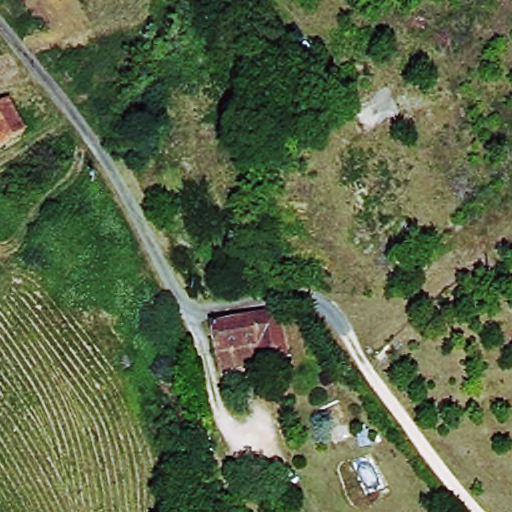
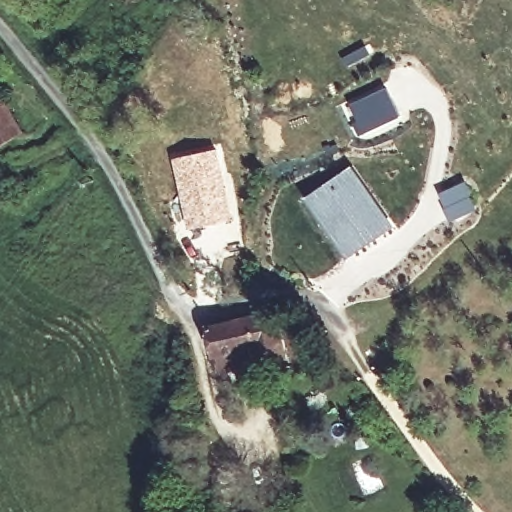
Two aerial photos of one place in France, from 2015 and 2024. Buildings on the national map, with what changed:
new [(351,106),(387,88),(400,117),(364,134),(351,106)]
unchanged [(0,135),(0,129),(2,134),(0,135)]
new [(218,146),(234,220),(187,229),(171,157),(218,146)]
new [(347,259),(306,198),(354,166),(394,227),(347,259)]
unchanged [(49,269),(63,291),(54,296),(40,275),(49,269)]
unchanged [(254,351),(216,358),(211,327),(273,315),(281,362),(257,367),(254,351)]

